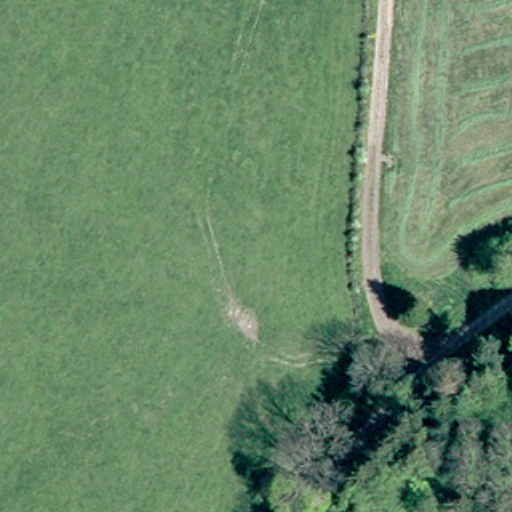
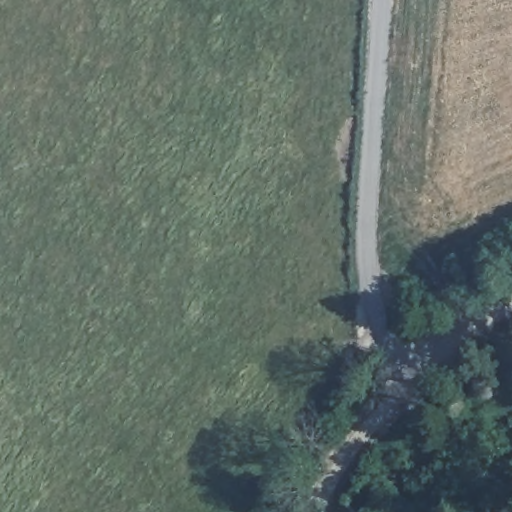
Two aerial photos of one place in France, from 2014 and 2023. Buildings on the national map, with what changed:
unchanged [(405,512),(359,512),(349,502),(377,471),(414,504),(405,512)]

